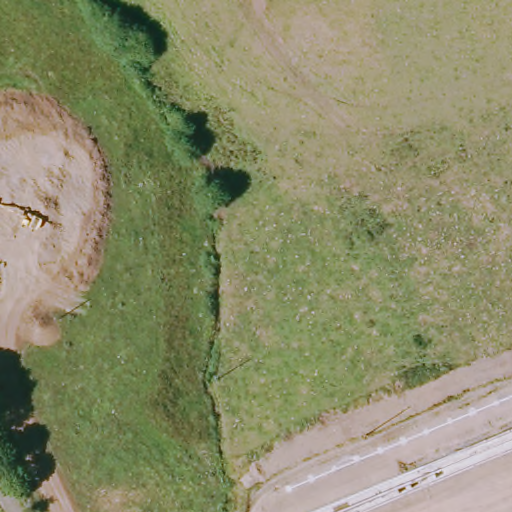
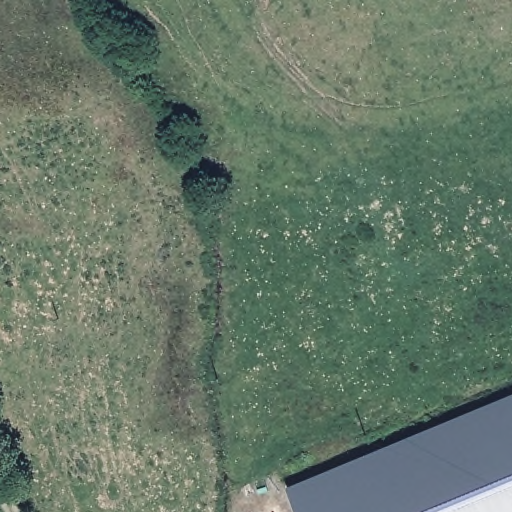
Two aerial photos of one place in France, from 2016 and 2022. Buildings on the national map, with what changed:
new [(289,486),(512,393),(512,512),(299,512),(289,486)]

